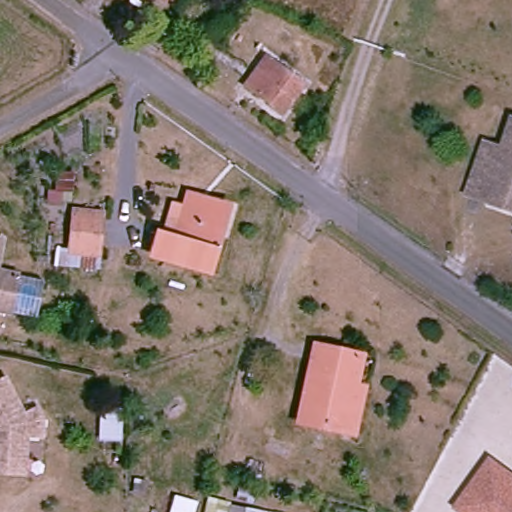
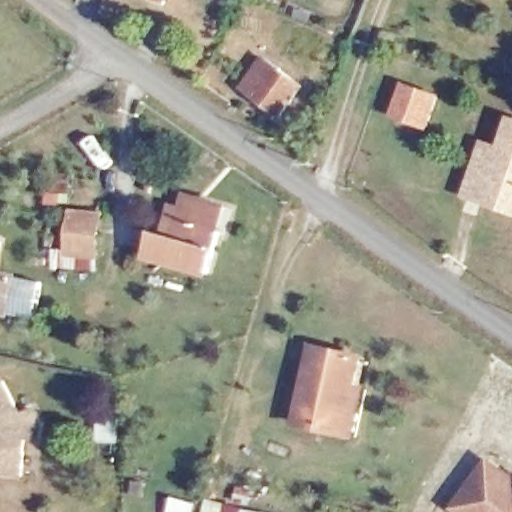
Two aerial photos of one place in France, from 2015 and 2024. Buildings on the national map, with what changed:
unchanged [(164,3),(157,0),(165,0),(164,3)]
unchanged [(270,52),(308,79),(287,109),(249,82),(270,52)]
new [(402,81),(442,95),(430,130),(390,117),(402,81)]
unchanged [(495,188),(492,196),(472,189),(484,153),(502,159),(512,130),(512,194),(495,188)]
unchanged [(73,196),(61,195),(54,195),(54,174),(63,174),(74,174),(73,196)]
unchanged [(220,245),(213,269),(157,253),(162,232),(180,237),(193,192),(232,203),(220,245)]
unchanged [(92,264),(51,261),(52,248),(64,249),(67,207),(97,210),(92,264)]
unchanged [(0,245),(0,232),(2,233),(0,245)]
unchanged [(41,276),(34,311),(0,304),(0,277),(1,272),(1,271),(0,270),(0,265),(42,273),(41,276)]
unchanged [(1,272),(0,277),(0,270),(1,271),(1,272)]
unchanged [(325,348),(371,358),(354,434),(307,424),(325,348)]
unchanged [(32,403),(37,415),(38,429),(23,429),(23,466),(0,466),(0,375),(19,410),(32,403)]
unchanged [(487,465),(512,483),(512,512),(482,512),(463,499),(487,465)]
unchanged [(454,512),(463,499),(482,512),(454,512)]
unchanged [(248,512),(204,512),(207,502),(248,512)]

